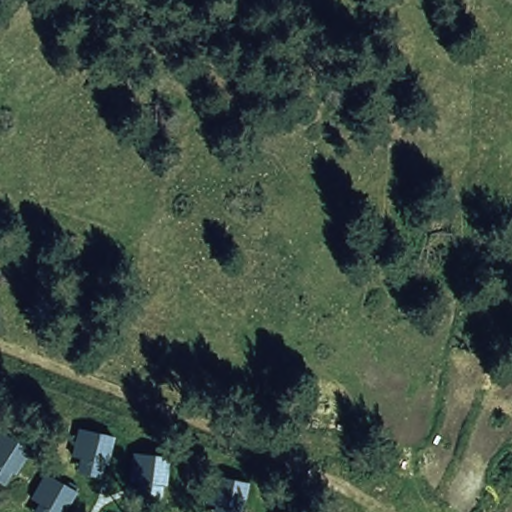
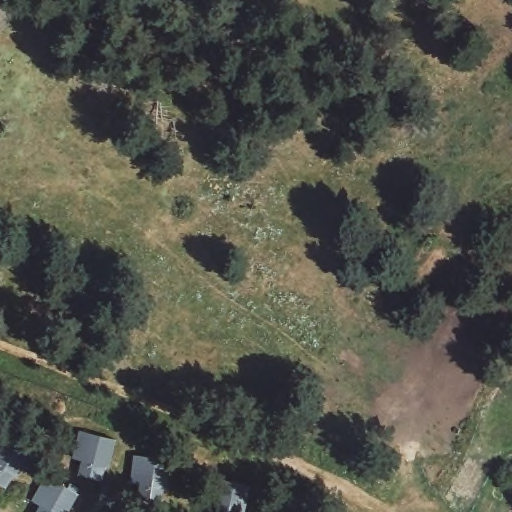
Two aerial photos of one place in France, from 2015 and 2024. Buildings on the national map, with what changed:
unchanged [(0,485),(0,431),(0,430),(32,448),(5,488),(0,485)]
unchanged [(73,472),(82,430),(116,437),(106,478),(73,472)]
unchanged [(131,498),(137,453),(171,457),(166,500),(131,498)]
unchanged [(81,493),(71,512),(30,512),(48,476),(81,493)]
unchanged [(213,500),(217,476),(249,483),(244,509),(238,508),(237,512),(216,512),(218,500),(213,500)]

